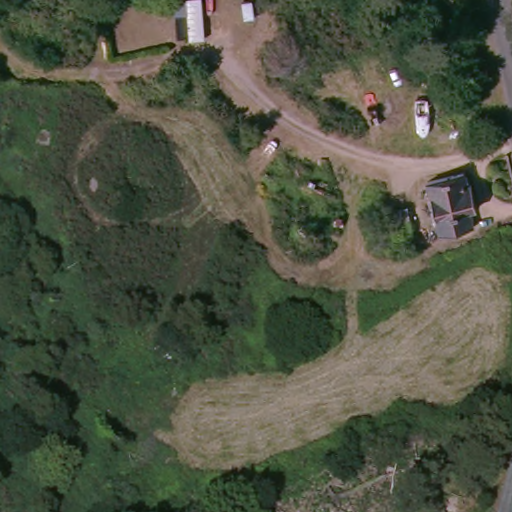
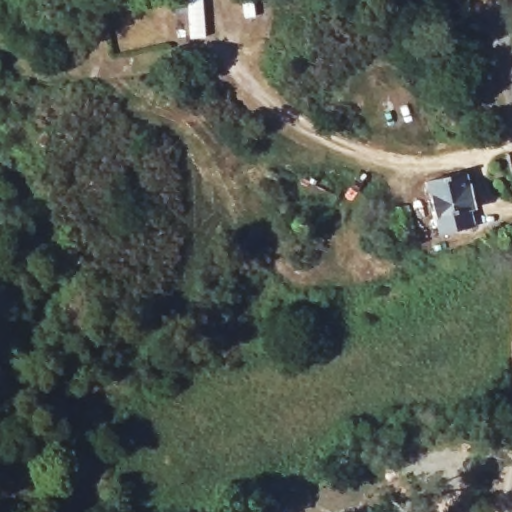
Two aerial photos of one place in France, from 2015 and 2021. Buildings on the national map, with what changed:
unchanged [(189,0),(208,0),(209,39),(190,41),(189,0)]
unchanged [(469,193),(476,191),(484,210),(472,231),(439,236),(429,184),(463,175),(469,193)]
unchanged [(394,236),(393,207),(414,205),(413,235),(394,236)]

